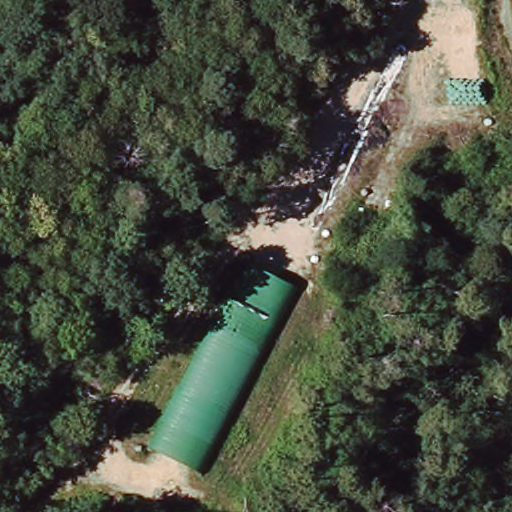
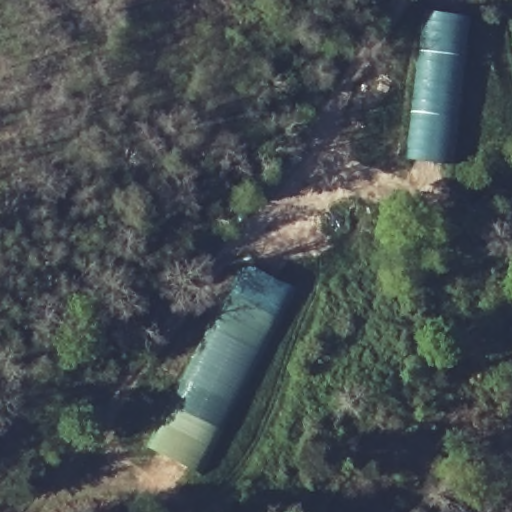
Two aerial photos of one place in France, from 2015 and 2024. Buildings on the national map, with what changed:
new [(424,12),(465,16),(449,165),(408,160),(424,12)]
unchanged [(292,281),(198,475),(143,449),(237,255),(292,281)]

